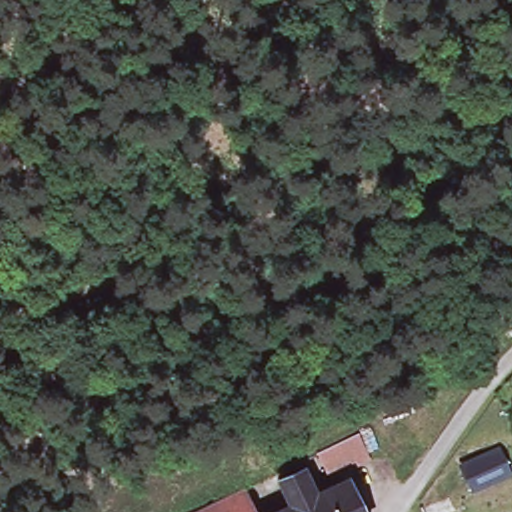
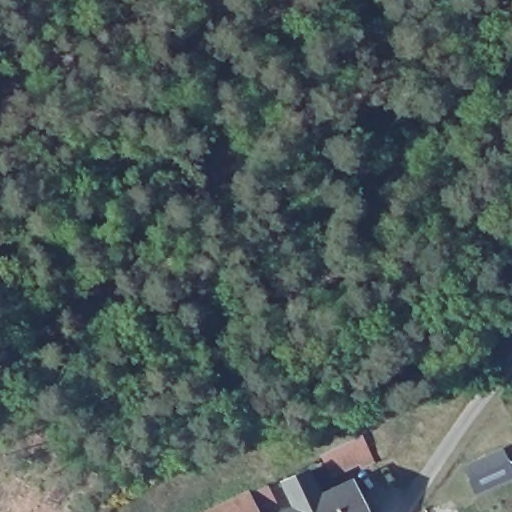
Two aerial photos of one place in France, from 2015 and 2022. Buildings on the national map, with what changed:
unchanged [(363,445),(376,473),(361,480),(358,474),(332,487),(320,466),(363,445)]
unchanged [(507,449),(512,458),(512,480),(477,495),(461,469),(507,449)]
unchanged [(306,481),(318,505),(350,490),(359,512),(295,512),(285,491),(306,481)]
unchanged [(250,498),(257,512),(220,512),(221,511),(250,498)]
unchanged [(456,512),(446,512),(455,508),(456,512)]

